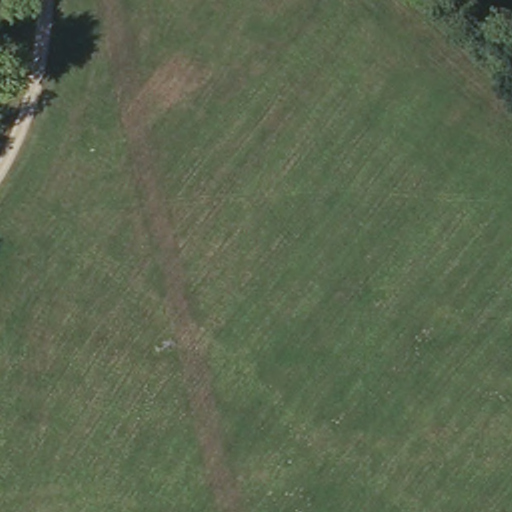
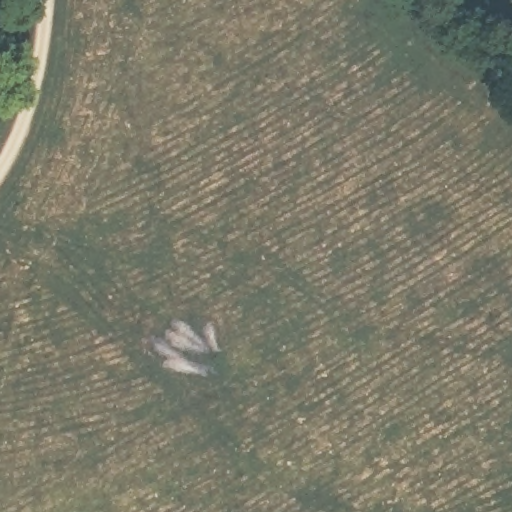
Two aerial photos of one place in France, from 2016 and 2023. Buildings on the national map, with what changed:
[]

